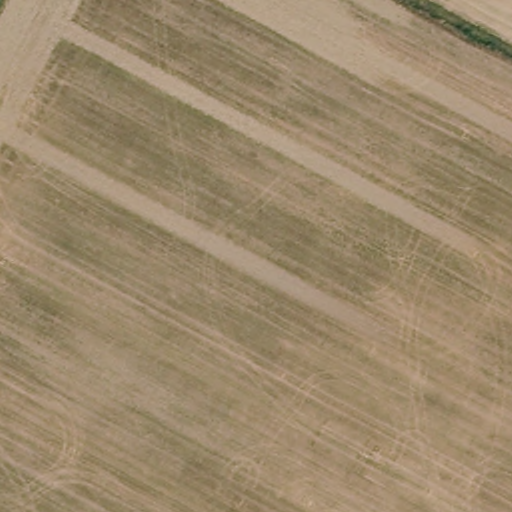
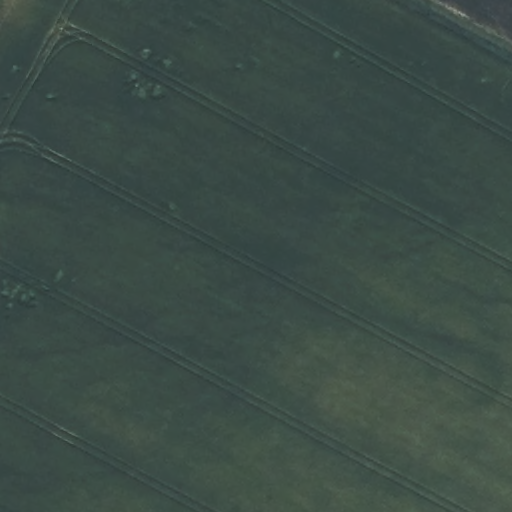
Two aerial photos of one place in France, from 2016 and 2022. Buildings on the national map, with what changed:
[]

